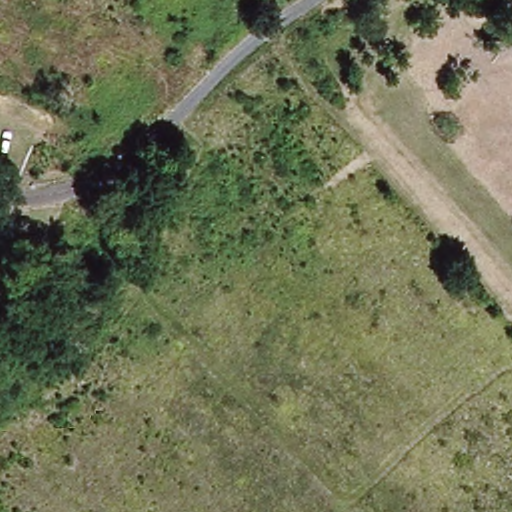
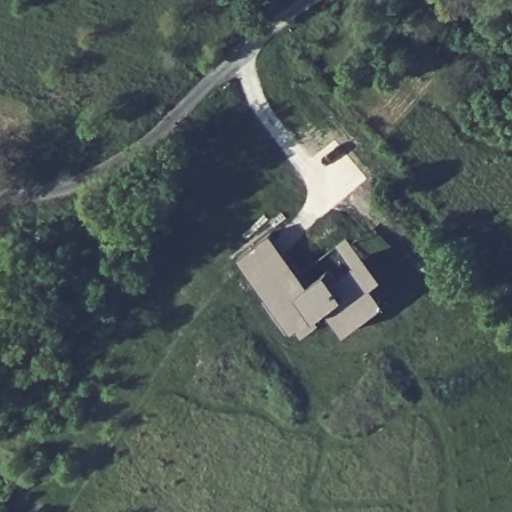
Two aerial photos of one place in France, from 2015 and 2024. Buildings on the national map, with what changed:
new [(267,235),(299,273),(289,280),(277,266),(258,278),(295,327),(290,330),(236,260),(267,235)]
new [(309,318),(310,322),(293,333),(290,330),(295,327),(258,278),(277,266),(289,280),(299,273),(307,285),(325,270),(334,281),(354,264),(337,244),(348,235),(364,256),(376,272),(390,289),(380,297),(382,302),(355,322),(336,337),(326,325),(328,325),(317,312),(309,318)]

